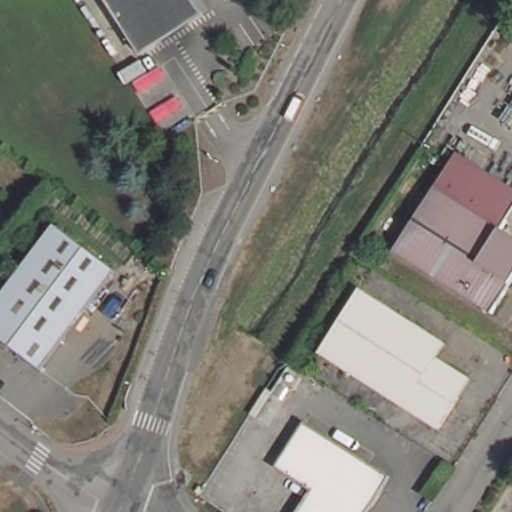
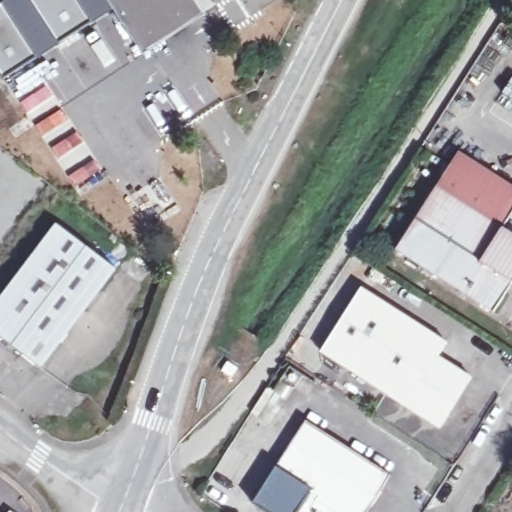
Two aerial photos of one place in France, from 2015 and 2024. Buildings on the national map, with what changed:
new [(113,9),(5,79),(0,71),(0,6),(9,0),(107,0),(113,9)]
unchanged [(155,5),(125,26),(107,0),(163,0),(155,5)]
unchanged [(207,12),(145,57),(125,26),(155,5),(163,0),(199,0),(207,12)]
unchanged [(401,254),(455,170),(512,204),(512,222),(506,231),(512,235),(512,295),(500,315),(401,254)]
unchanged [(120,274),(50,371),(0,334),(0,307),(1,308),(57,229),(120,274)]
unchanged [(475,382),(443,430),(323,354),(364,289),(450,345),(441,360),(475,382)]
unchanged [(377,512),(308,512),(322,490),(288,468),(315,424),(399,476),(377,512)]
unchanged [(211,481),(204,493),(192,486),(199,475),(211,481)]

